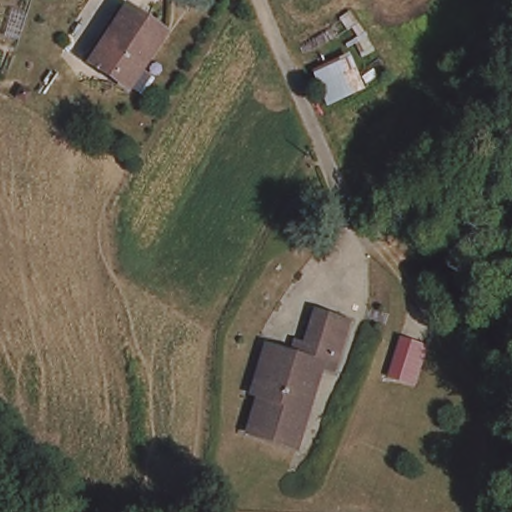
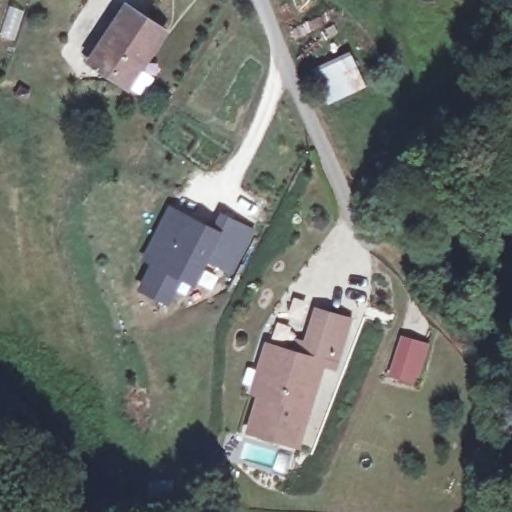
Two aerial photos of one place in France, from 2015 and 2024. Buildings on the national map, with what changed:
unchanged [(77,0),(87,0),(84,4),(77,0)]
unchanged [(159,31),(126,88),(110,79),(113,71),(91,57),(119,8),(159,31)]
unchanged [(320,104),(306,73),(351,53),(365,86),(320,104)]
new [(212,227),(220,212),(256,229),(233,275),(210,261),(196,288),(183,281),(169,305),(136,289),(149,263),(141,258),(170,204),(212,227)]
unchanged [(256,377),(261,347),(287,352),(289,342),(302,343),(308,309),(339,316),(332,364),(318,363),(304,445),(254,436),(261,391),(253,390),(256,377)]
unchanged [(428,343),(417,385),(386,374),(399,334),(428,343)]

